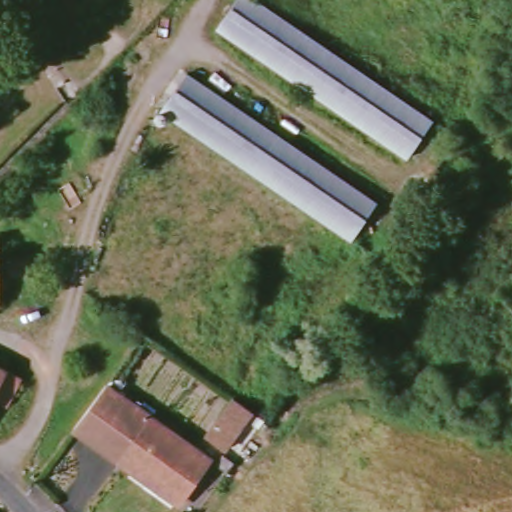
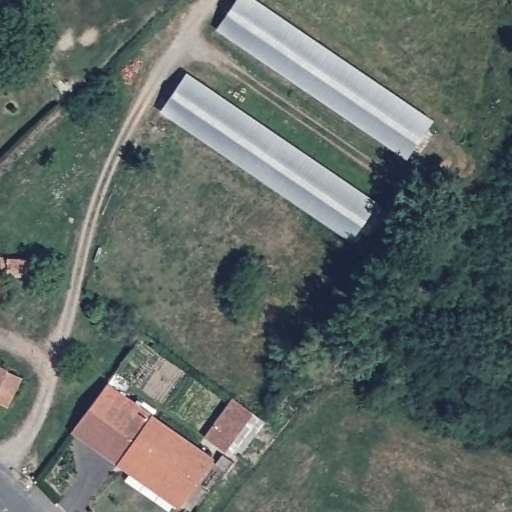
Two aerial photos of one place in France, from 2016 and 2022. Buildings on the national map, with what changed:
unchanged [(240,0),(262,0),(431,127),(403,165),(221,25),(240,0)]
unchanged [(278,140),(372,211),(344,249),(162,108),(189,72),(278,140)]
unchanged [(1,284),(0,307),(1,311),(0,311),(0,235),(1,235),(1,264),(19,264),(18,284),(1,284)]
unchanged [(30,381),(15,410),(0,402),(0,365),(14,373),(30,381)]
unchanged [(118,463),(95,446),(72,431),(103,388),(211,462),(185,499),(179,507),(118,463)]
unchanged [(253,413),(226,451),(205,437),(232,399),(253,413)]

